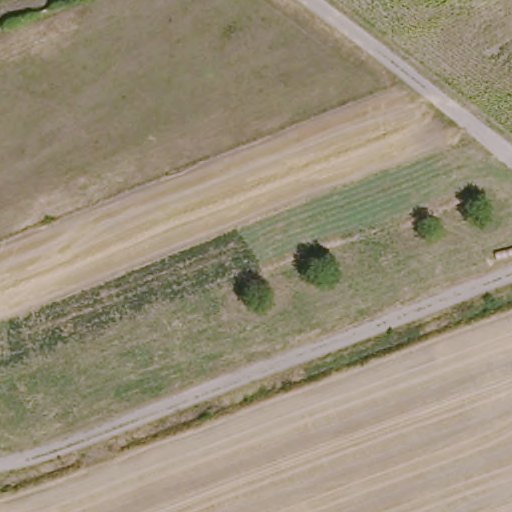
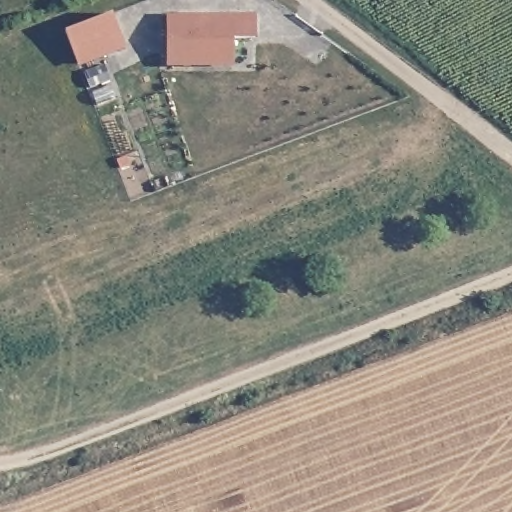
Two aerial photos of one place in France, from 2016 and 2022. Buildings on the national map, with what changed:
new [(67,31),(112,13),(125,47),(79,65),(67,31)]
new [(168,64),(168,14),(255,13),(257,38),(232,38),(232,65),(168,64)]

